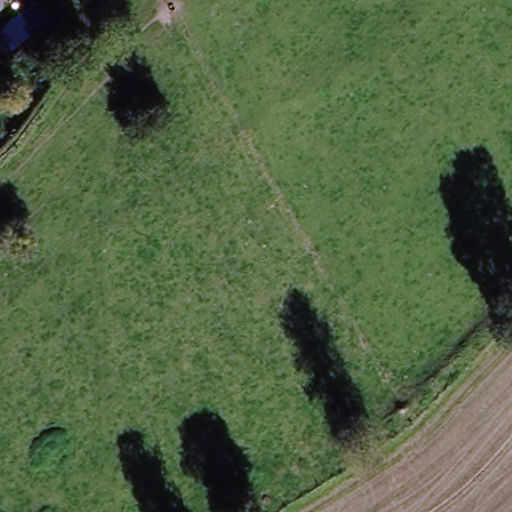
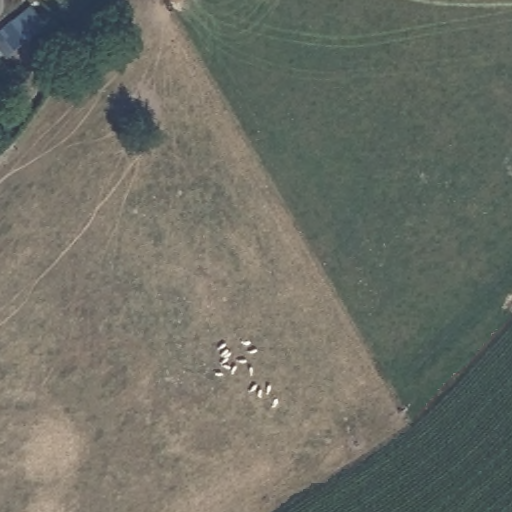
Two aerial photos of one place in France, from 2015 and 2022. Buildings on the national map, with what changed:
unchanged [(6,58),(0,49),(0,32),(31,5),(47,25),(6,58)]

